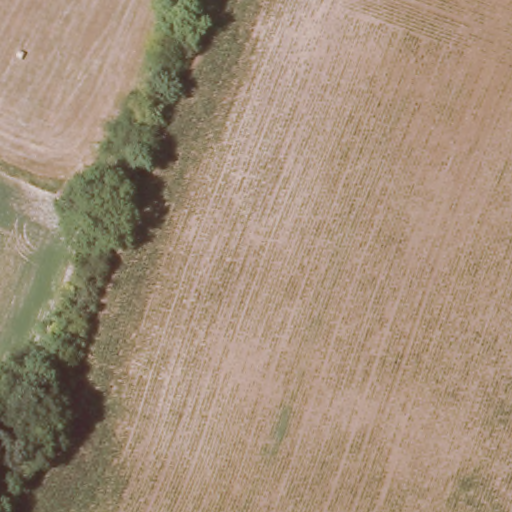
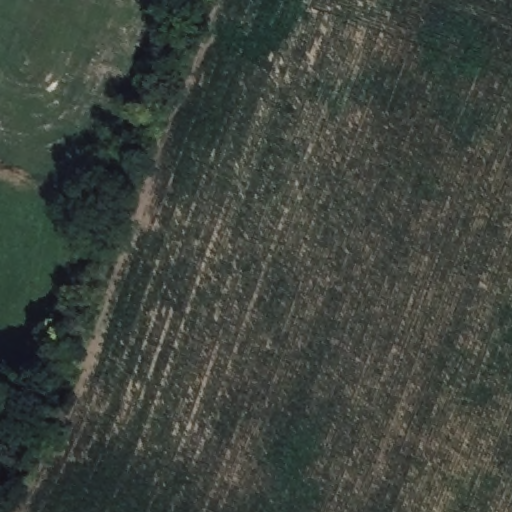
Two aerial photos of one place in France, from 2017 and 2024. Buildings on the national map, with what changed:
[]

